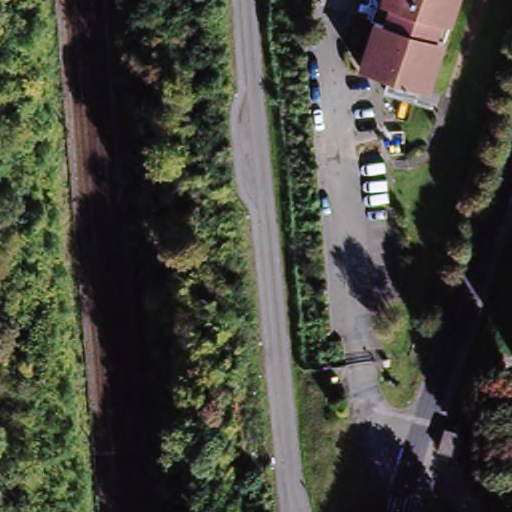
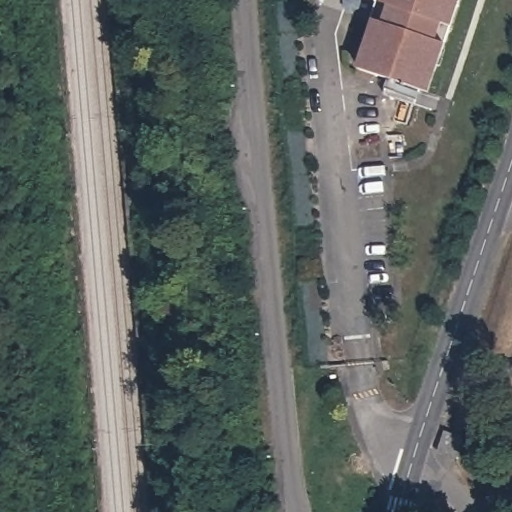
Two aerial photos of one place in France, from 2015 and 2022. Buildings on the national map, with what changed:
unchanged [(405,107),(373,96),(378,81),(348,70),(365,23),(360,21),(367,4),(366,2),(365,0),(450,0),(417,95),(410,92),(405,107)]
unchanged [(481,416),(474,436),(456,431),(463,411),(481,416)]

